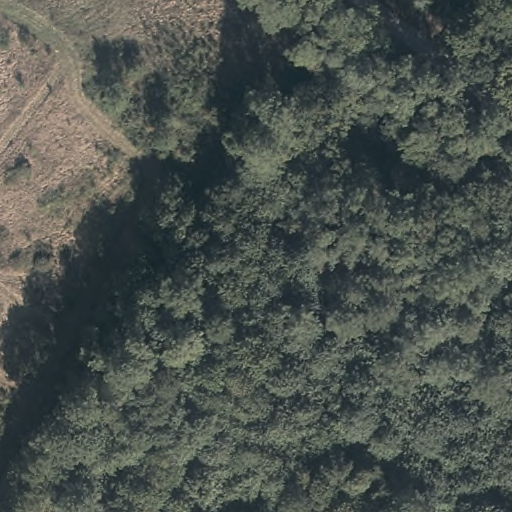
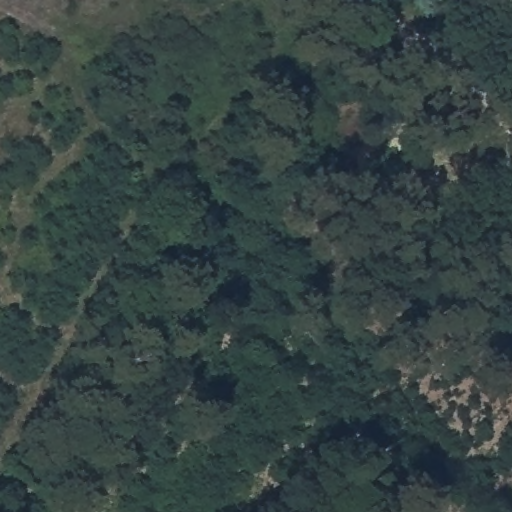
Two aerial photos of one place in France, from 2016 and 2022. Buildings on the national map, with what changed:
unchanged [(506,16),(512,20),(512,44),(495,32),(506,16)]

